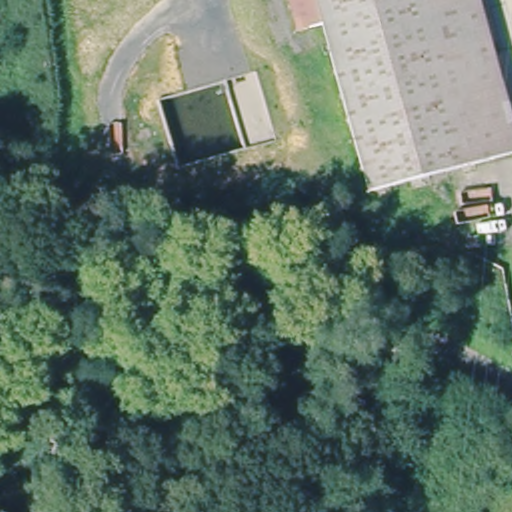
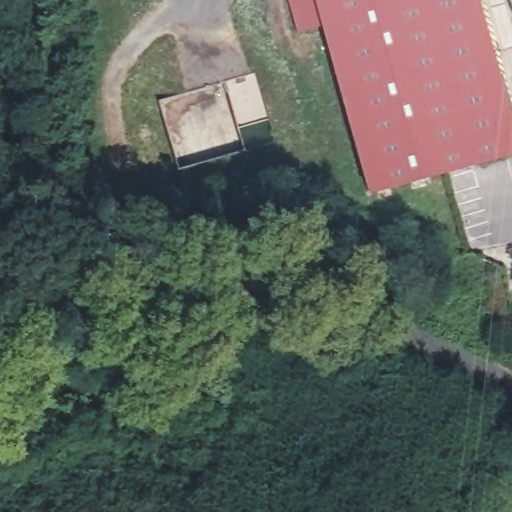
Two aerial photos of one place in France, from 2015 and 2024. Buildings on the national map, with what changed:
unchanged [(512,119),(512,165),(457,179),(432,186),(373,202),(329,38),(299,46),(286,0),(480,0),(512,119)]
unchanged [(457,179),(478,258),(453,265),(432,186),(457,179)]

